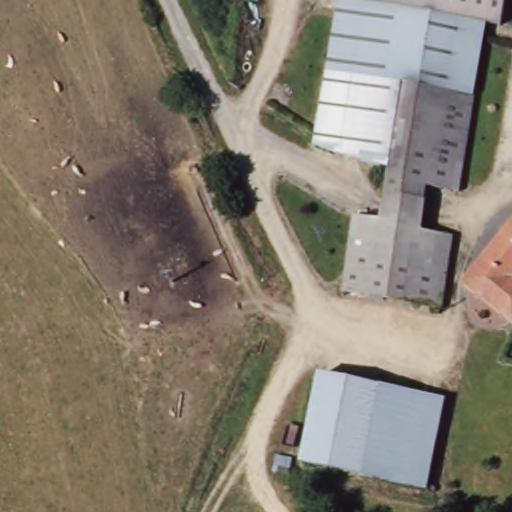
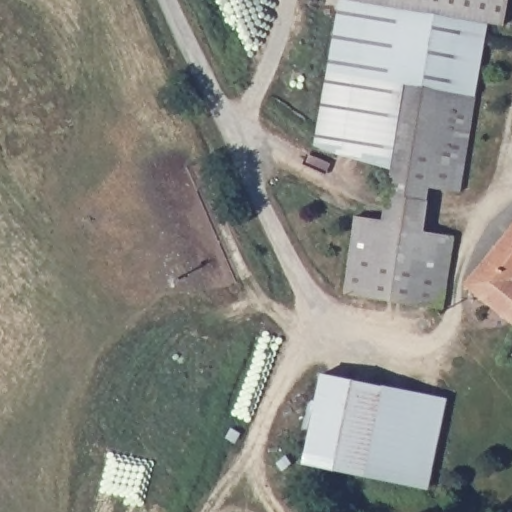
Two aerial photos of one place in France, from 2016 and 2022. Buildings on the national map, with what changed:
unchanged [(334,75),(327,74),(340,0),(353,0),(359,1),(359,0),(394,0),(393,7),(488,24),(476,100),(462,191),(430,188),(423,231),(455,237),(444,307),(343,295),(355,217),(383,221),(387,182),(389,167),(355,162),(358,143),(324,136),(334,75)]
unchanged [(359,1),(353,0),(359,0),(359,1)]
unchanged [(502,26),(488,24),(393,7),(394,0),(507,0),(502,26)]
unchanged [(512,225),(512,324),(462,285),(512,225)]
unchanged [(322,375),(431,395),(447,398),(430,487),(417,485),(305,465),(322,375)]

